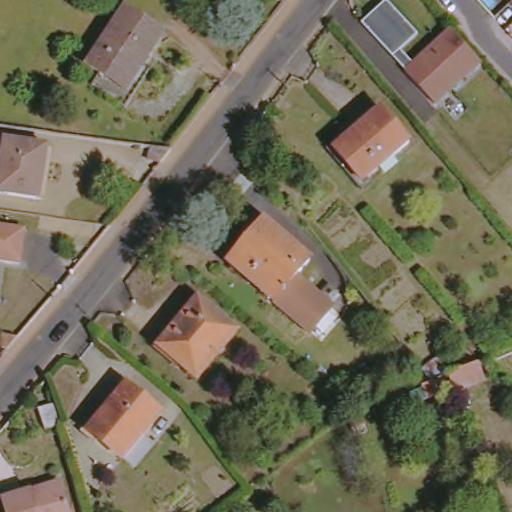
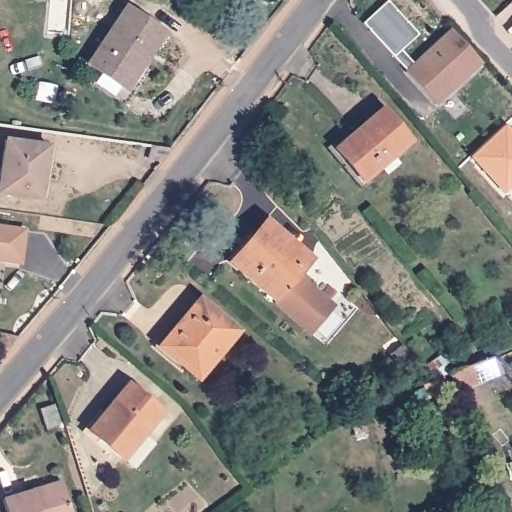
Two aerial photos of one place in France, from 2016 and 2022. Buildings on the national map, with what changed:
unchanged [(406,75),(363,25),(388,2),(419,37),(402,52),(415,66),(406,75)]
unchanged [(168,38),(150,60),(159,66),(126,110),(93,86),(103,74),(90,64),(129,10),(168,38)]
unchanged [(453,31),(483,63),(434,108),(429,102),(406,75),(453,31)]
unchanged [(366,181),(339,147),(386,109),(414,143),(366,181)]
new [(471,156),(504,125),(512,133),(512,184),(503,191),(471,156)]
unchanged [(48,202),(4,196),(11,141),(54,148),(48,202)]
unchanged [(173,146),(162,160),(146,159),(149,143),(173,146)]
unchanged [(301,276),(337,304),(316,331),(232,265),(266,223),(314,259),(301,276)]
unchanged [(0,259),(0,225),(29,229),(25,262),(0,259)]
unchanged [(201,379),(184,364),(186,362),(168,344),(194,314),(192,312),(203,299),(243,333),(201,379)]
unchanged [(447,371),(475,361),(482,376),(454,388),(447,371)]
unchanged [(428,398),(423,386),(443,378),(448,389),(428,398)]
unchanged [(99,434),(138,388),(171,416),(131,462),(99,434)]
unchanged [(45,428),(36,405),(49,401),(56,423),(45,428)]
unchanged [(5,504),(36,494),(66,486),(68,491),(73,512),(8,512),(5,504)]

